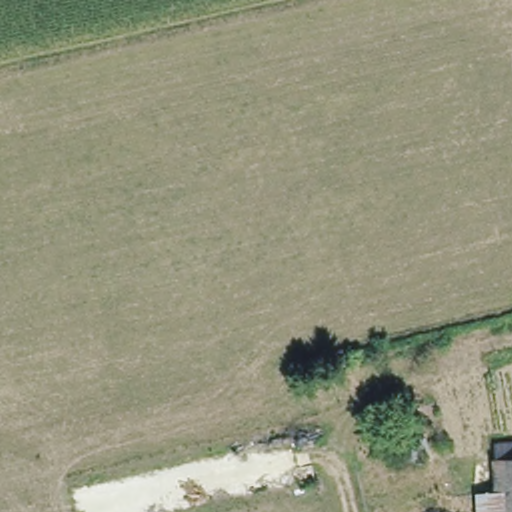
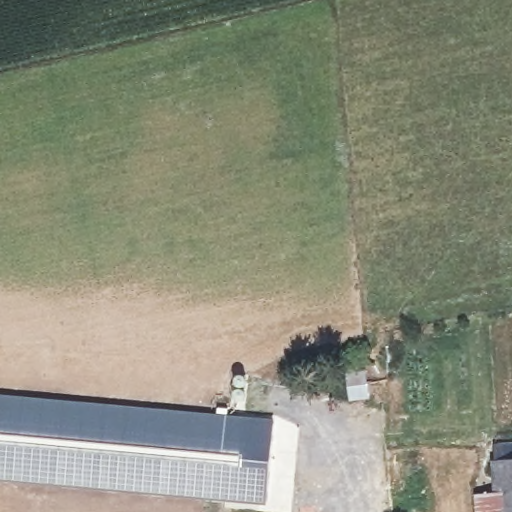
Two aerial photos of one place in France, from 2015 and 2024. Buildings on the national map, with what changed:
new [(273,418),(266,506),(0,480),(0,394),(273,418)]
demolished [(305,461),(321,459),(324,474),(169,512),(83,512),(75,487),(299,432),(305,461)]
demolished [(424,477),(395,487),(381,446),(406,436),(424,477)]
unchanged [(493,467),(512,466),(512,496),(491,495),(493,467)]
unchanged [(470,496),(481,496),(491,495),(512,496),(512,512),(470,512),(470,496)]

